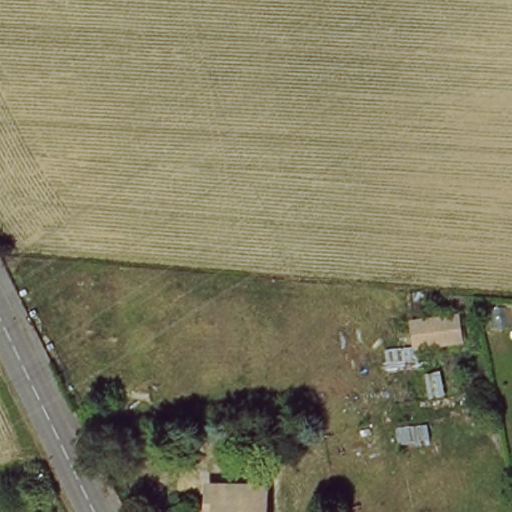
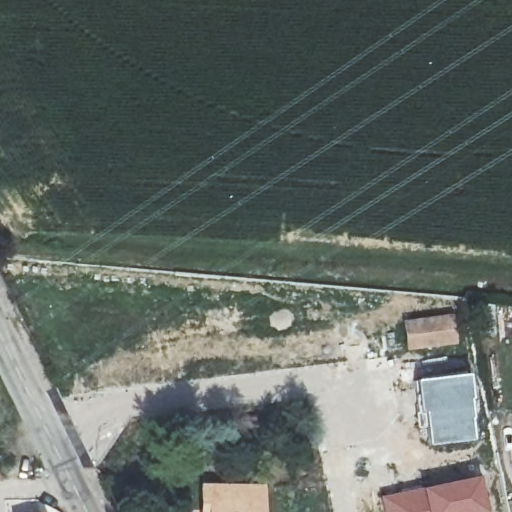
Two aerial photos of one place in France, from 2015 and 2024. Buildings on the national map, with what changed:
unchanged [(456,310),(460,338),(412,346),(407,315),(456,310)]
new [(468,372),(473,441),(424,446),(416,407),(412,378),(468,372)]
new [(483,512),(382,512),(379,496),(477,475),(483,512)]
unchanged [(260,512),(211,512),(211,503),(201,503),(202,481),(261,483),(260,512)]

